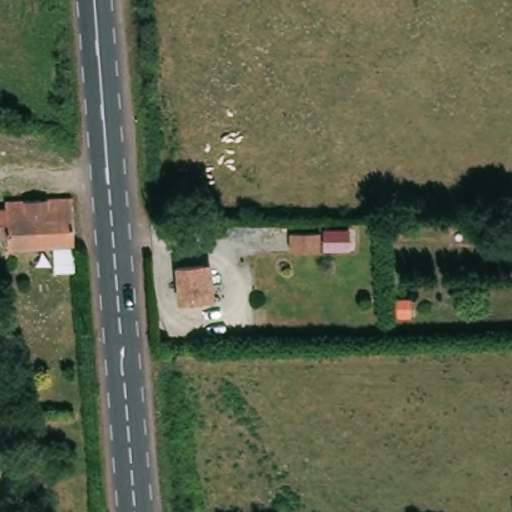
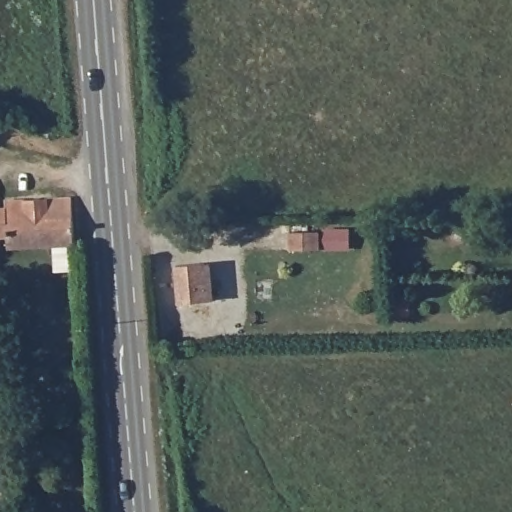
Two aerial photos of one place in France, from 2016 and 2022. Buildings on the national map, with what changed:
unchanged [(9,208),(14,202),(76,199),(79,249),(14,254),(14,237),(0,238),(0,208),(9,208)]
unchanged [(204,229),(204,245),(178,245),(178,230),(204,229)]
unchanged [(321,234),(320,250),(291,254),(290,237),(321,234)]
unchanged [(211,281),(217,281),(218,305),(183,306),(181,266),(210,265),(211,281)]
unchanged [(232,265),(232,277),(228,281),(217,281),(216,265),(232,265)]

